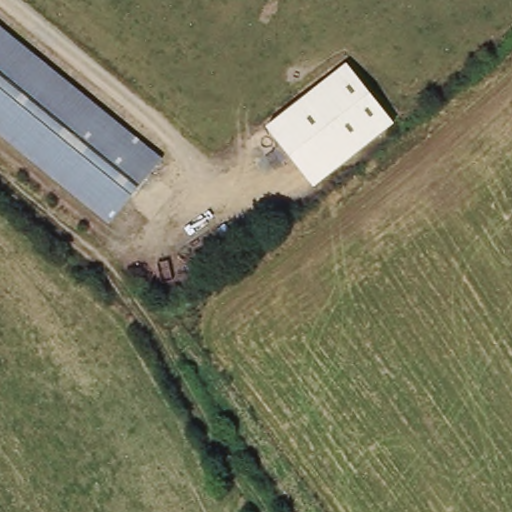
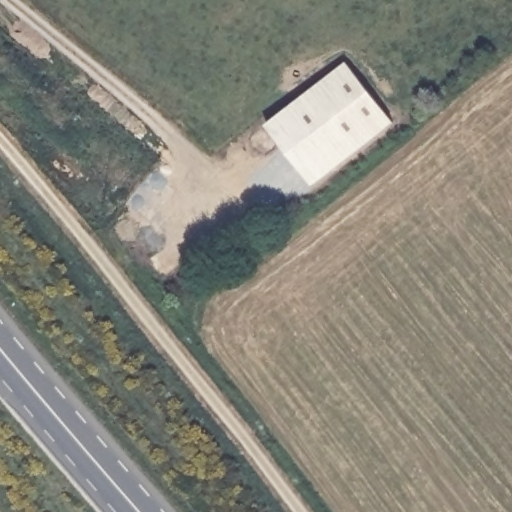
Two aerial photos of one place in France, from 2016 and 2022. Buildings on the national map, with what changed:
demolished [(166,159),(116,220),(0,129),(0,27),(166,159)]
unchanged [(350,66),(392,117),(310,180),(268,127),(350,66)]

